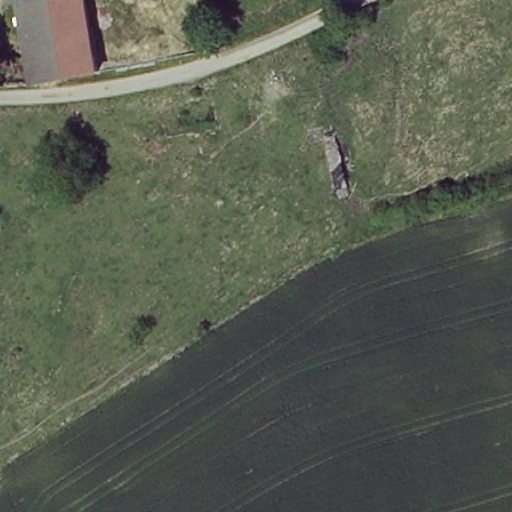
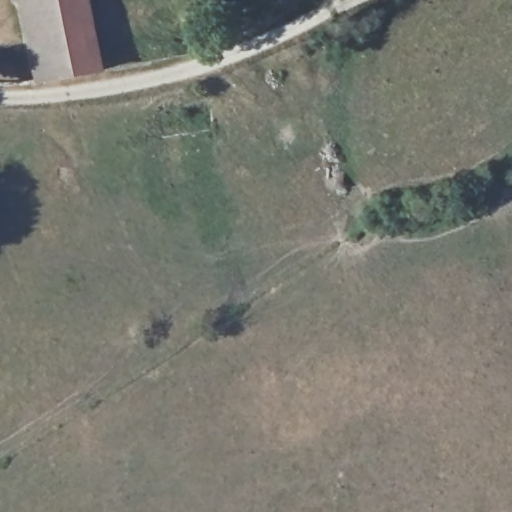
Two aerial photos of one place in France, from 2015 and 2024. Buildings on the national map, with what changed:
unchanged [(25,0),(81,0),(95,70),(41,80),(25,0)]

